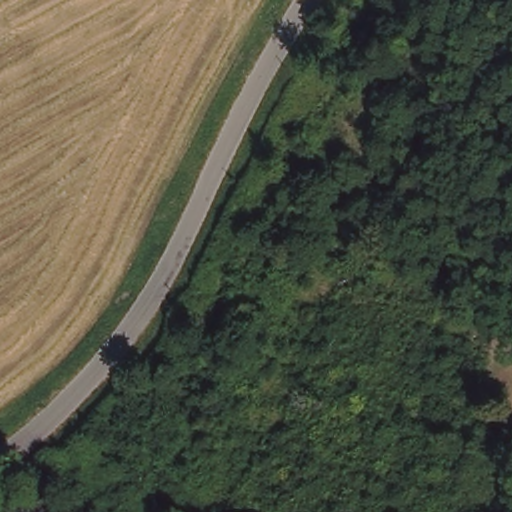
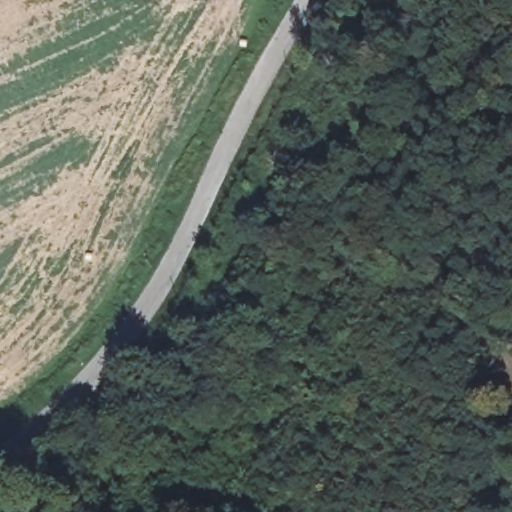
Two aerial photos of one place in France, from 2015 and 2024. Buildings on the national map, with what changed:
[]

